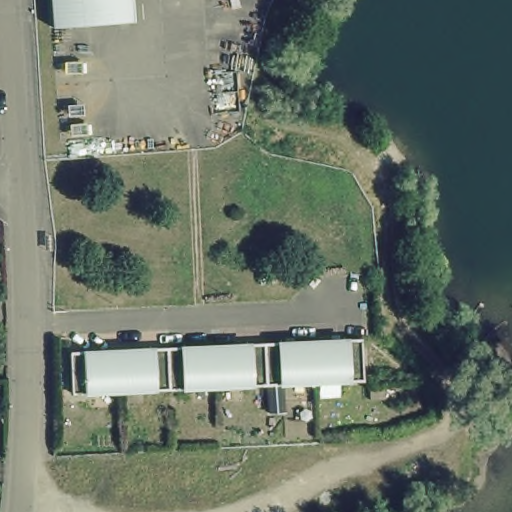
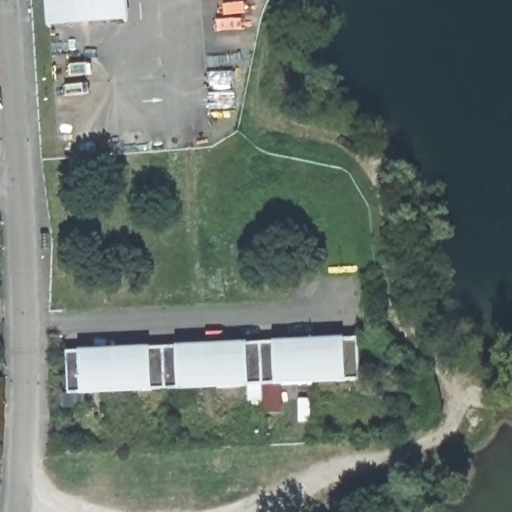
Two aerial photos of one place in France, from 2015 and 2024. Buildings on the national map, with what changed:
unchanged [(47,22),(45,0),(125,0),(126,15),(47,22)]
unchanged [(357,380),(71,386),(69,345),(207,340),(356,337),(357,380)]

